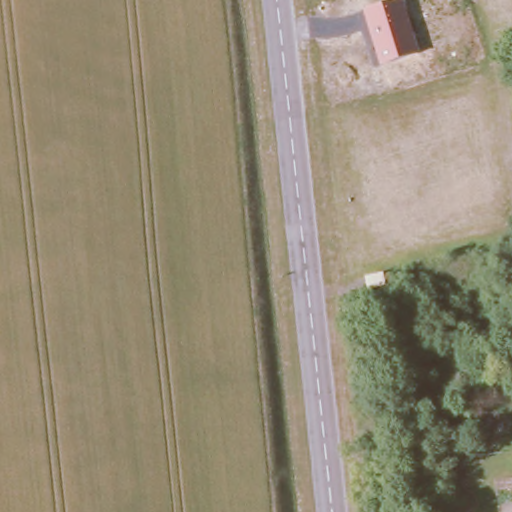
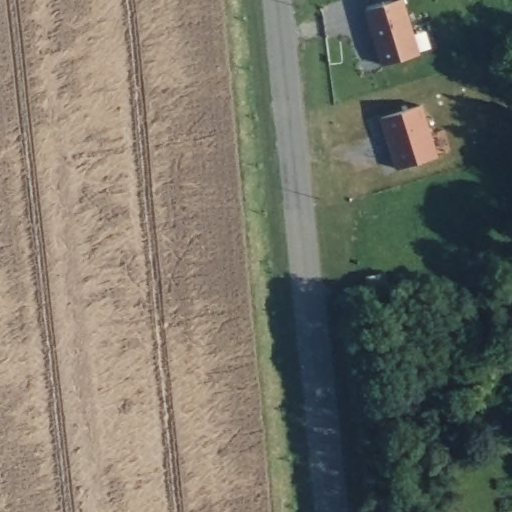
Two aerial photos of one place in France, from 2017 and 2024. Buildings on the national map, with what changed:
unchanged [(380,66),(362,10),(393,0),(404,0),(421,51),(380,66)]
new [(420,102),(436,154),(397,167),(380,115),(420,102)]
unchanged [(370,289),(367,277),(385,272),(387,284),(370,289)]
unchanged [(512,333),(512,416),(478,424),(460,343),(512,333)]

